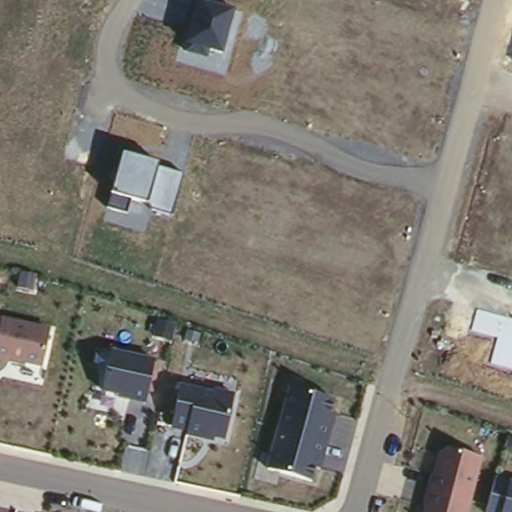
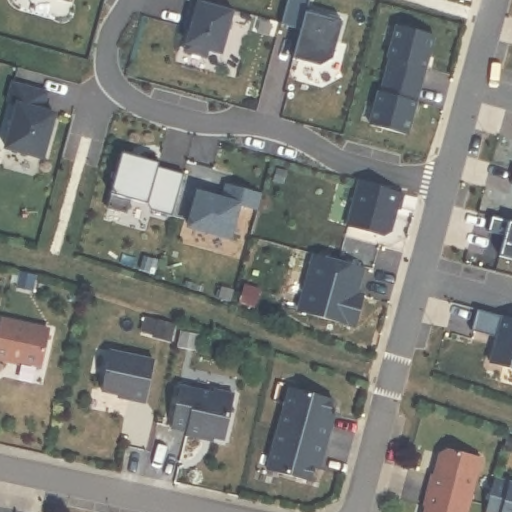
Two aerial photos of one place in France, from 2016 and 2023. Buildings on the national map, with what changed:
new [(67,0),(69,0),(69,1),(67,0)]
unchanged [(209,51),(207,60),(181,52),(185,44),(197,0),(199,0),(236,10),(224,55),(209,51)]
new [(310,0),(307,12),(340,21),(332,57),(320,66),(293,59),(301,29),(281,24),(288,0),(310,0)]
new [(381,91),(383,91),(392,58),(390,57),(399,24),(435,34),(408,135),(371,125),(381,91)]
new [(18,105),(8,102),(13,83),(47,92),(42,110),(55,114),(43,157),(6,147),(18,105)]
unchanged [(160,164),(158,168),(182,174),(170,217),(152,212),(149,204),(133,200),(127,216),(105,209),(123,154),(160,164)]
new [(510,186),(512,178),(512,186),(510,186)]
new [(198,191),(223,197),(228,182),(262,191),(257,207),(239,202),(230,235),(189,224),(198,191)]
new [(362,184),(405,196),(401,212),(398,212),(392,236),(386,239),(349,229),(362,184)]
new [(508,221),(512,222),(512,257),(498,254),(504,237),(485,232),(491,217),(508,221)]
new [(308,298),(306,298),(317,257),(367,271),(360,296),(367,298),(359,330),(304,315),(308,298)]
unchanged [(512,319),(512,370),(490,364),(497,340),(471,332),(477,310),(512,319)]
unchanged [(41,367),(0,358),(0,318),(47,328),(41,367)]
unchanged [(151,360),(141,406),(115,401),(117,396),(98,392),(110,351),(151,360)]
unchanged [(208,394),(211,389),(230,394),(221,439),(211,437),(210,444),(167,432),(181,387),(208,394)]
unchanged [(336,400),(333,413),(337,415),(322,470),(316,469),(312,480),(266,470),(288,387),(336,400)]
unchanged [(480,458),(466,512),(422,512),(436,447),(480,458)]
unchanged [(493,478),(512,483),(512,512),(482,512),(493,478)]

